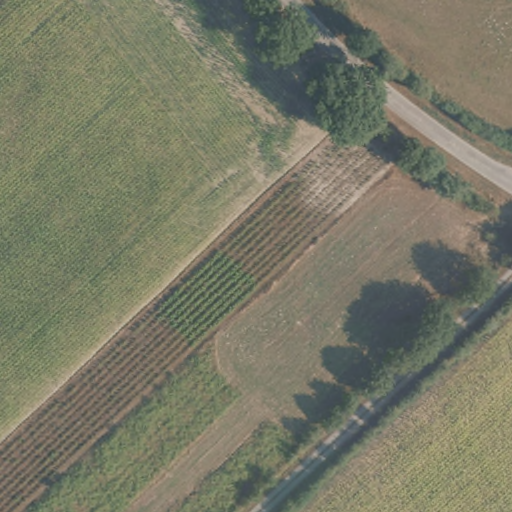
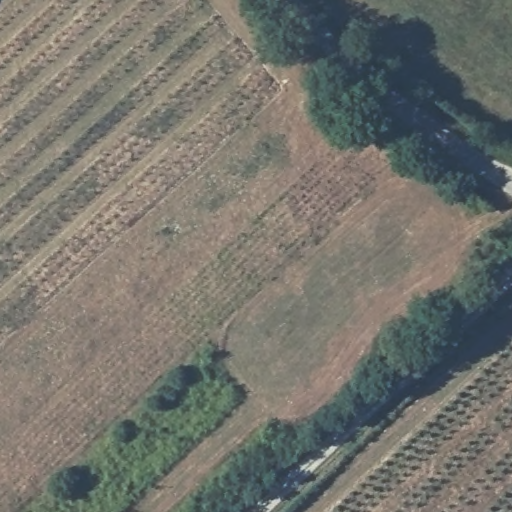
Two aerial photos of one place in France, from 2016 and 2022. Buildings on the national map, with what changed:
unchanged [(510,216),(512,218),(512,234),(502,225),(510,216)]

